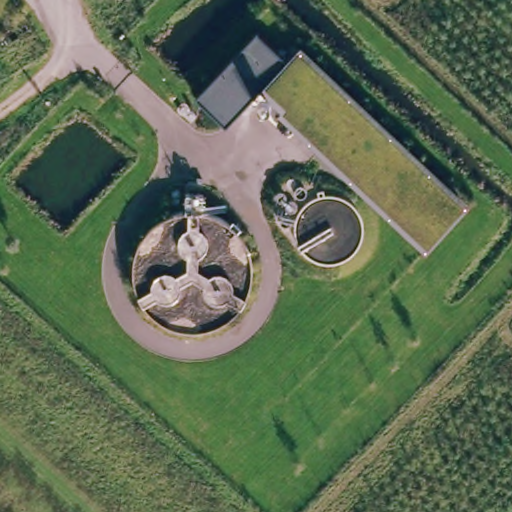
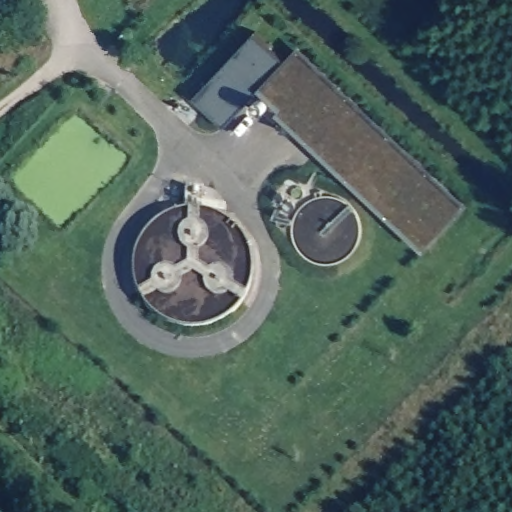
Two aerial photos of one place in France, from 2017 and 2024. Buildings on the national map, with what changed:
unchanged [(471,202),(428,252),(259,93),(227,127),(198,100),(259,34),(288,60),(304,44),(471,202)]

